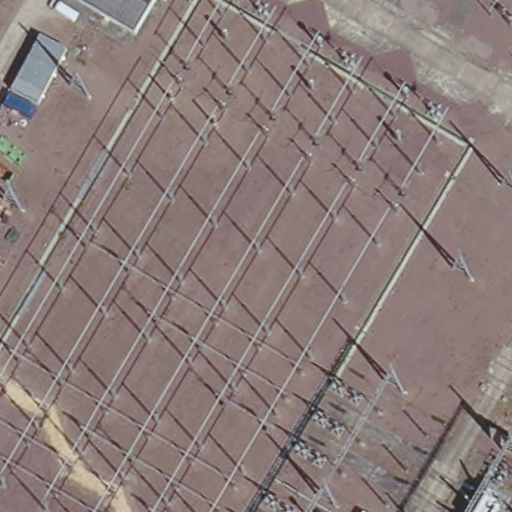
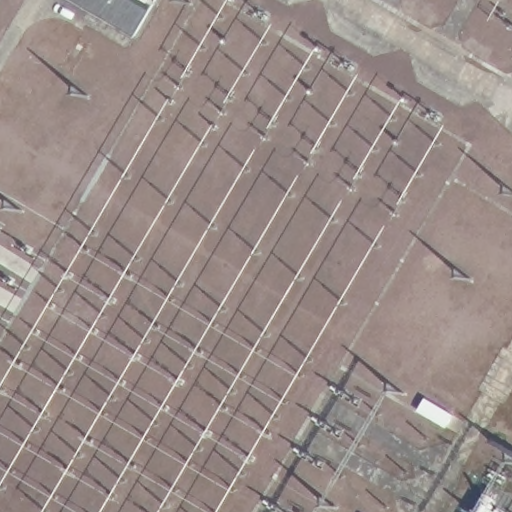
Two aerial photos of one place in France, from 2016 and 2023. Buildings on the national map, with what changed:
unchanged [(80,0),(152,0),(134,28),(80,0)]

